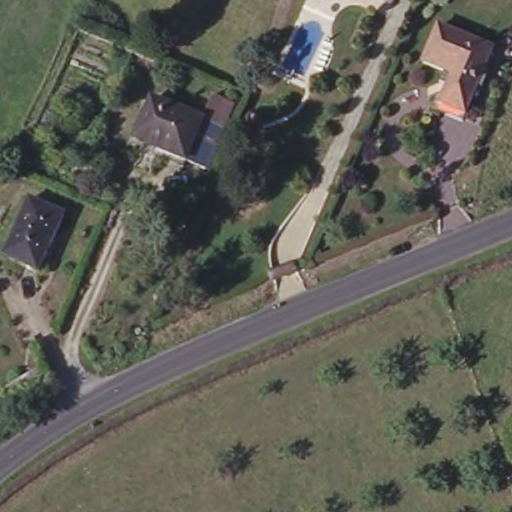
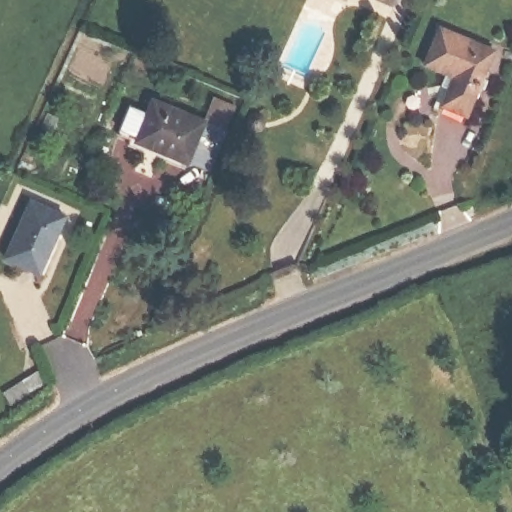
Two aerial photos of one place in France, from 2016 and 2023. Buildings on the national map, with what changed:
unchanged [(497,46),(470,113),(444,104),(456,76),(431,67),(448,25),(497,46)]
unchanged [(213,166),(192,158),(189,166),(135,145),(148,111),(154,114),(160,101),(170,103),(173,96),(184,99),(181,106),(211,119),(223,94),(240,100),(213,166)]
unchanged [(63,210),(42,265),(6,252),(27,196),(63,210)]

